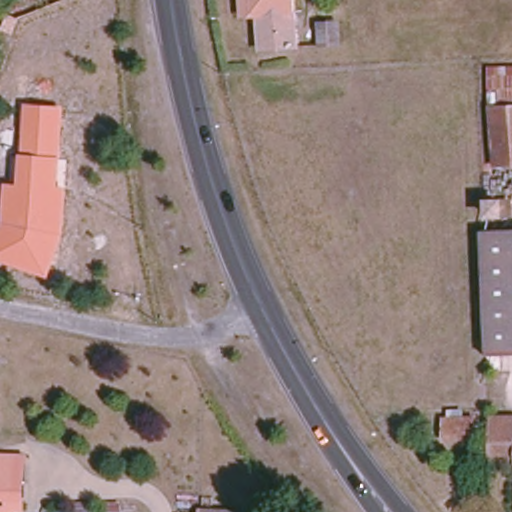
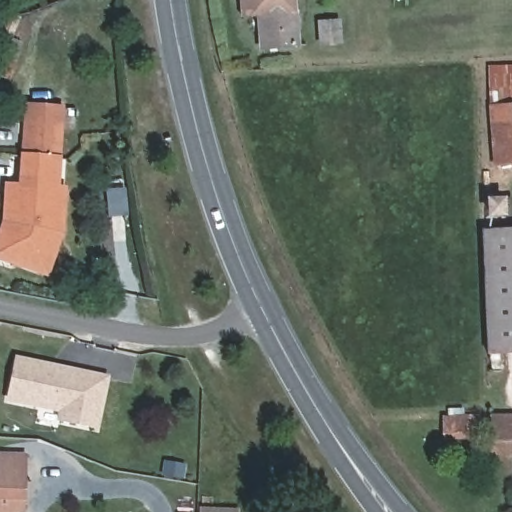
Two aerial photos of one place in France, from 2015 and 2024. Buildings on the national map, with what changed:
unchanged [(277,15),(265,15),(262,16),(250,17),(244,17),(243,0),(276,0),(277,15)]
unchanged [(265,15),(277,15),(276,0),(296,0),(300,45),(264,48),(262,16),(265,15)]
unchanged [(319,16),(343,14),(344,42),(321,45),(319,16)]
unchanged [(491,68),(512,67),(512,114),(493,115),(491,68)]
unchanged [(62,185),(69,186),(65,239),(50,276),(0,259),(0,234),(4,223),(6,185),(19,184),(21,154),(25,154),(27,105),(66,106),(62,185)]
unchanged [(493,115),(512,114),(512,164),(494,164),(493,115)]
unchanged [(503,199),(505,220),(486,220),(485,200),(503,199)]
unchanged [(487,278),(486,233),(512,232),(512,351),(491,352),(487,278)]
new [(17,361),(98,378),(90,415),(9,398),(17,361)]
unchanged [(512,452),(494,452),(494,417),(512,416),(512,452)]
unchanged [(450,418),(460,418),(477,417),(477,436),(446,438),(446,419),(450,418)]
unchanged [(24,460),(23,512),(0,512),(0,458),(24,460)]
unchanged [(242,512),(207,512),(207,510),(242,511),(242,512)]

